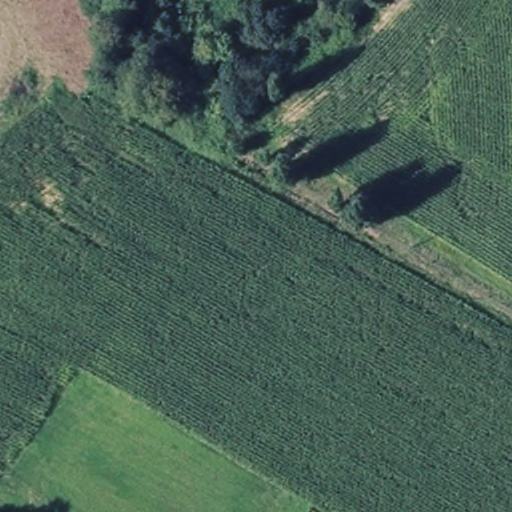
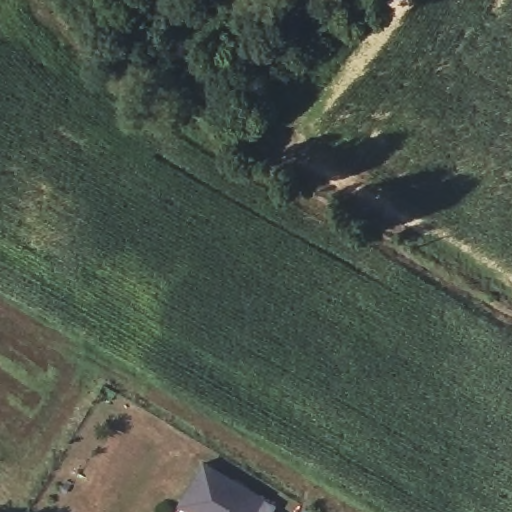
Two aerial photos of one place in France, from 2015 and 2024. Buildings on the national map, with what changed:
new [(178,503),(181,499),(203,462),(275,505),(272,512),(193,512),(178,503)]

